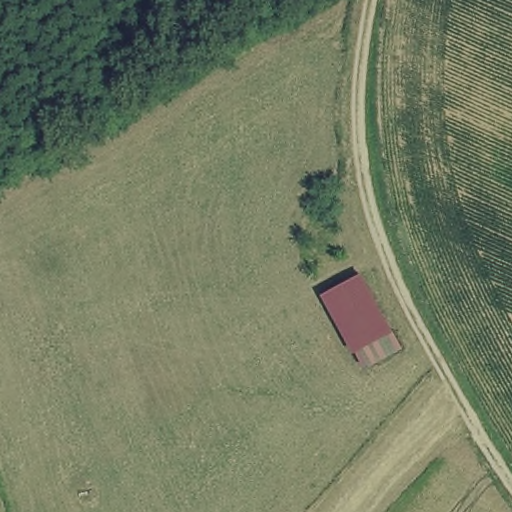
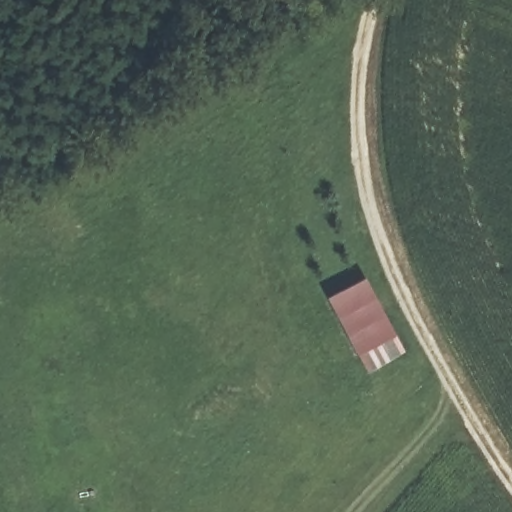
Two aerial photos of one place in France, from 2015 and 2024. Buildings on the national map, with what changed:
unchanged [(353,350),(324,295),(363,275),(391,329),(353,350)]

